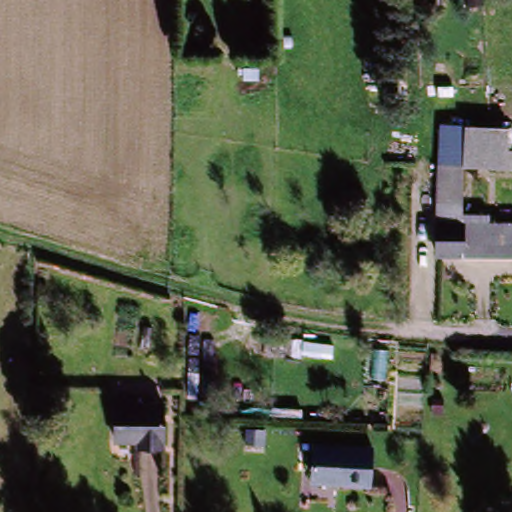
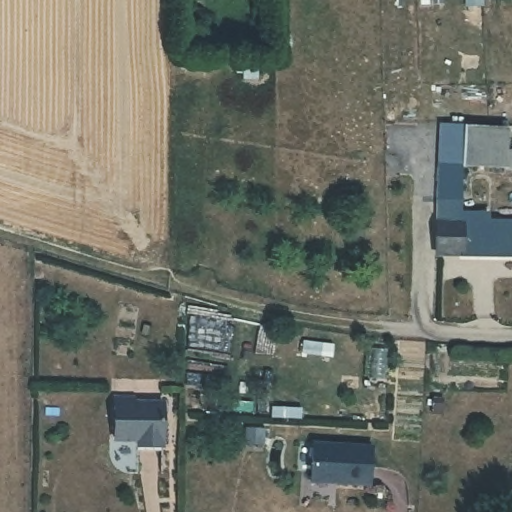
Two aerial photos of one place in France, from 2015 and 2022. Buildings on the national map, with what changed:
unchanged [(508,150),(512,150),(512,169),(464,170),(463,215),(490,216),(490,226),(512,226),(512,259),(440,259),(438,166),(438,126),(464,126),(509,125),(508,150)]
unchanged [(161,405),(161,449),(133,449),(134,441),(113,441),(113,406),(161,405)]
unchanged [(371,448),(370,486),(311,486),(313,447),(371,448)]

